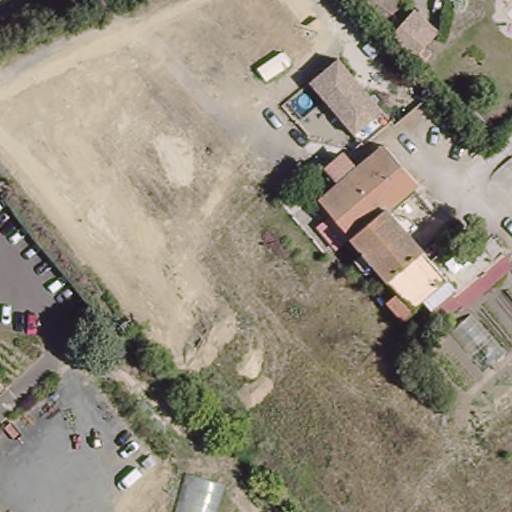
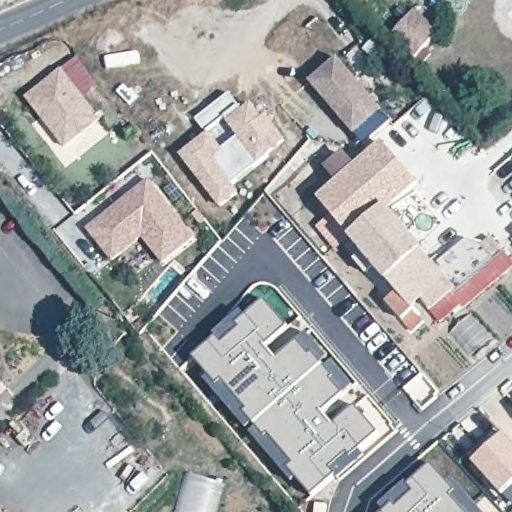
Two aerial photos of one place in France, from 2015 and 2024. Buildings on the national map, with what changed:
unchanged [(419,59),(391,36),(417,5),(444,28),(419,59)]
unchanged [(304,74),(334,50),(387,112),(357,137),(304,74)]
new [(64,71),(103,120),(65,150),(26,101),(64,71)]
new [(240,107),(241,109),(251,102),(285,140),(258,165),(236,136),(224,120),(240,107)]
unchanged [(353,246),(325,209),(312,192),(341,168),(333,158),(348,146),(356,155),(387,130),(419,168),(423,172),(392,198),(433,246),(437,250),(439,249),(441,246),(444,245),(446,243),(448,241),(450,239),(452,237),(464,227),(482,229),(496,245),(451,283),(448,280),(427,298),(417,286),(411,292),(419,301),(416,304),(421,310),(409,319),(384,286),(363,259),(353,246)]
new [(207,132),(213,139),(222,149),(213,157),(232,185),(237,192),(219,206),(179,155),(207,132)]
new [(222,149),(236,136),(258,165),(232,185),(213,157),(222,149)]
new [(153,180),(198,237),(167,262),(146,235),(116,259),(92,229),(153,180)]
new [(419,301),(411,292),(417,286),(427,298),(448,280),(451,283),(496,245),(512,264),(512,271),(465,310),(461,306),(440,325),(431,312),(423,302),(419,307),(416,304),(419,301)]
new [(232,317),(234,320),(236,318),(238,320),(265,299),(291,327),(270,349),(278,358),(308,333),(329,356),(322,363),(332,375),(337,371),(335,370),(340,366),(355,383),(328,415),(335,422),(367,395),(396,430),(338,483),(334,480),(312,497),(296,478),(291,482),(202,377),(205,374),(192,358),(232,317)]
new [(512,445),(512,485),(502,495),(473,462),(503,435),(512,445)]
new [(453,480),(482,512),(384,512),(380,508),(408,483),(410,486),(432,467),(448,483),(453,480)]
unchanged [(224,483),(215,512),(174,512),(186,473),(224,483)]

